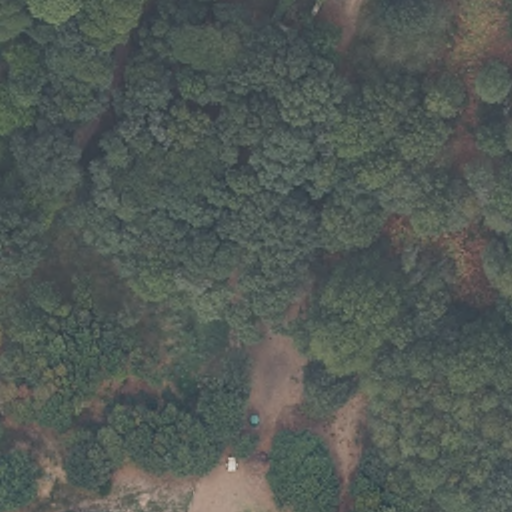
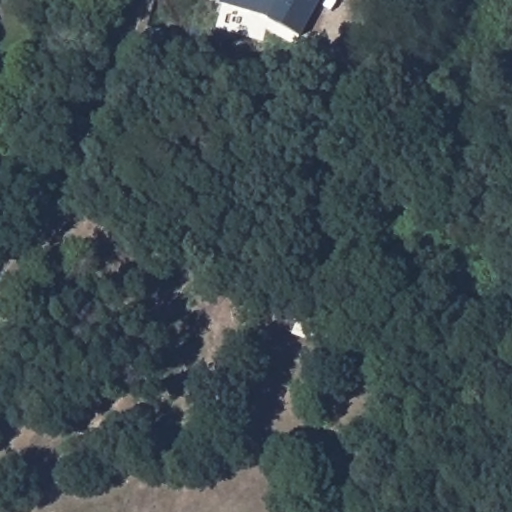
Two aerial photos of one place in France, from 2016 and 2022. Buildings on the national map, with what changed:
demolished [(299,36),(272,19),(283,0),(319,0),(299,36)]

